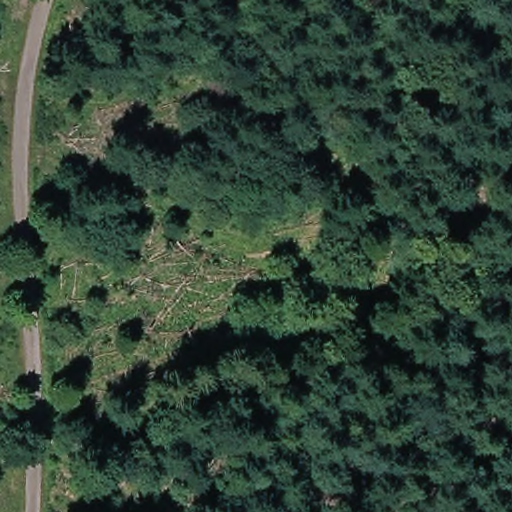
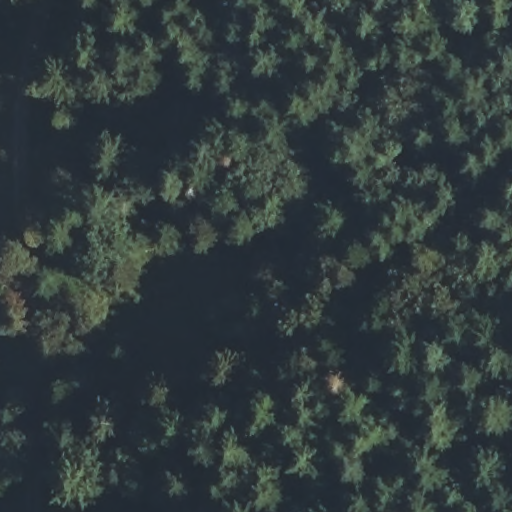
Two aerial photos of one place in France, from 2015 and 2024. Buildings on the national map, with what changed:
unchanged [(10,292),(1,290),(0,293),(0,262),(15,264),(10,292)]

